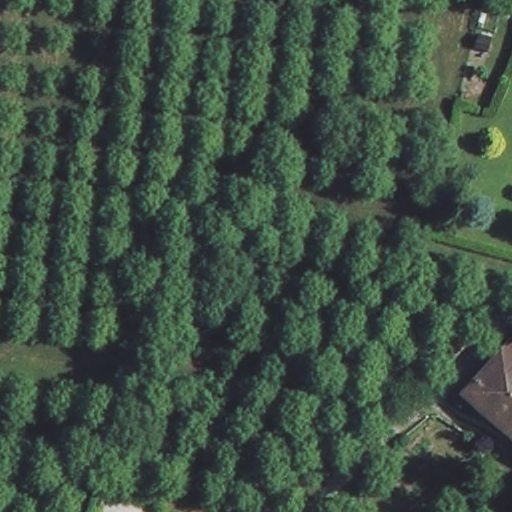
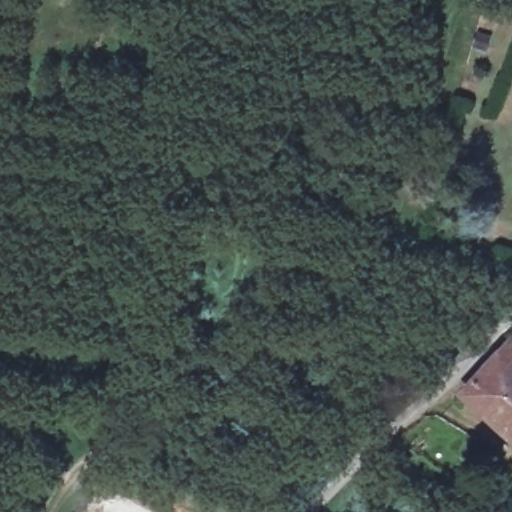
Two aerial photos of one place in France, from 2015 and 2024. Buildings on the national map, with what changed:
unchanged [(505,349),(512,341),(512,355),(505,349)]
unchanged [(470,390),(505,349),(512,355),(512,428),(470,390)]

